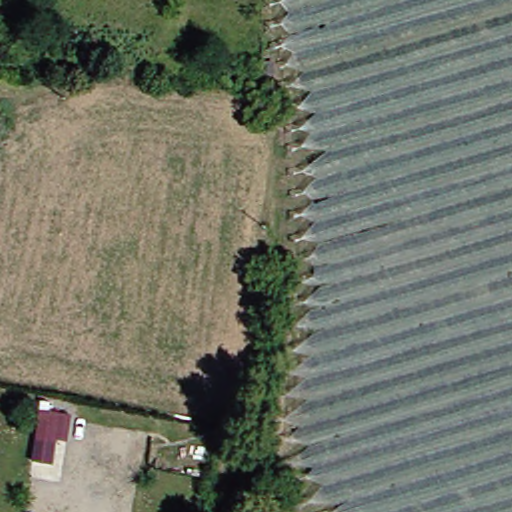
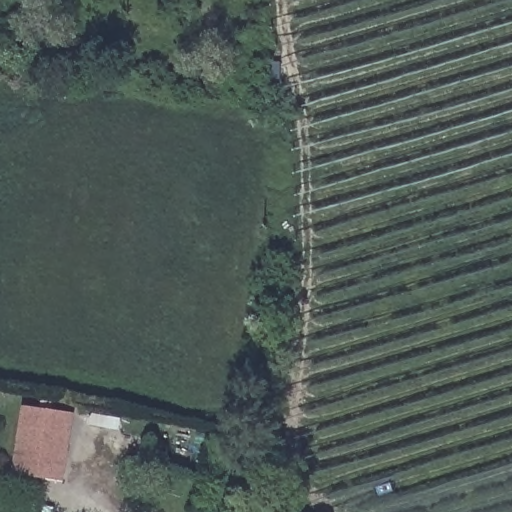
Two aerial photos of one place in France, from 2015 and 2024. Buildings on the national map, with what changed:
new [(76,416),(65,483),(13,473),(23,406),(76,416)]

